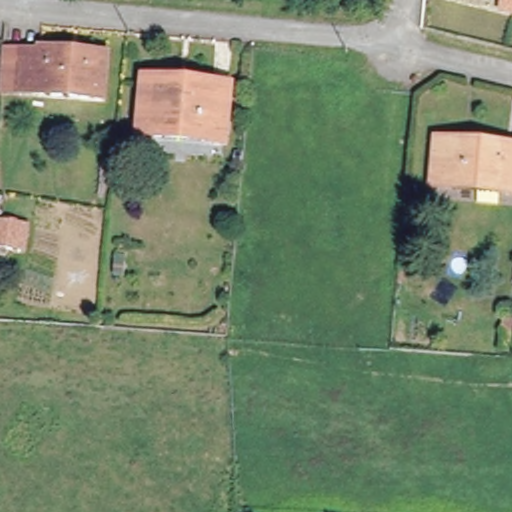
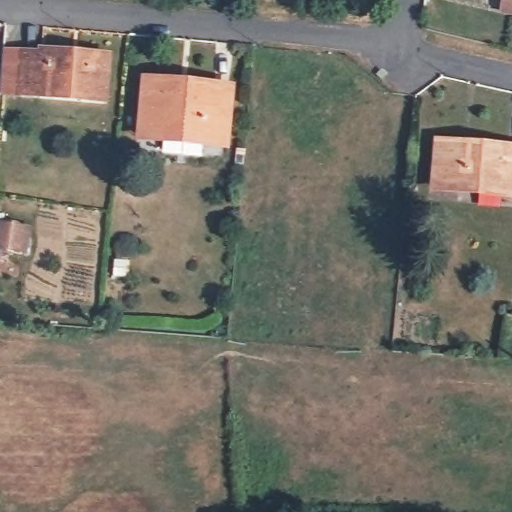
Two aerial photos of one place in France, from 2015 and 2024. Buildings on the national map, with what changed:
unchanged [(499,15),(501,0),(512,0),(512,16),(499,15)]
unchanged [(41,56),(107,58),(107,101),(22,98),(5,97),(6,58),(24,59),(41,59),(41,56)]
unchanged [(226,150),(141,146),(142,88),(229,93),(226,150)]
unchanged [(461,156),(502,159),(503,154),(512,154),(512,200),(435,193),(435,147),(462,149),(461,156)]
unchanged [(37,255),(9,255),(10,226),(39,226),(37,255)]

